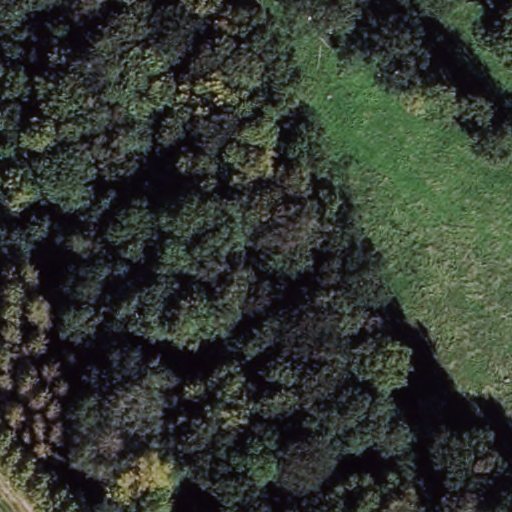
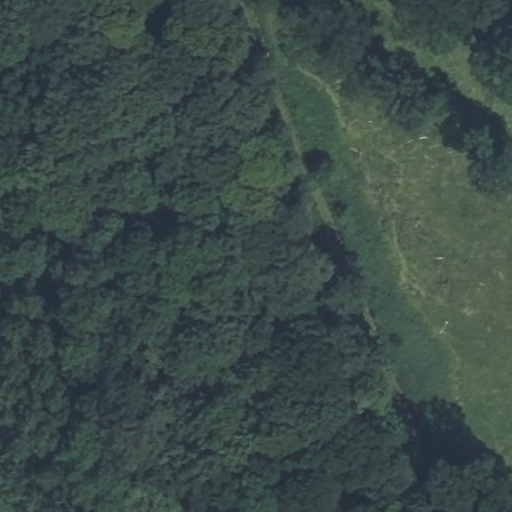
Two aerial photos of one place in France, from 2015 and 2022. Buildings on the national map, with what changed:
[]

